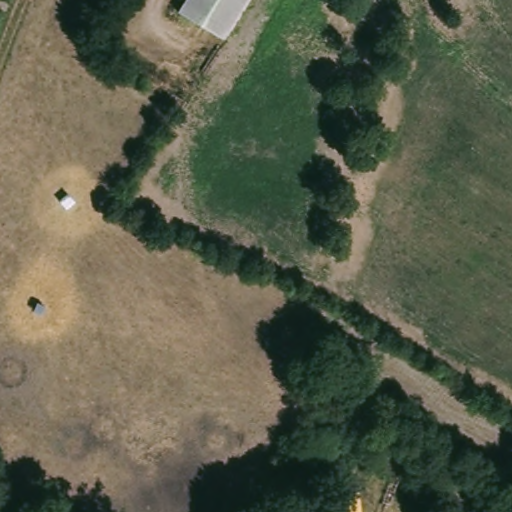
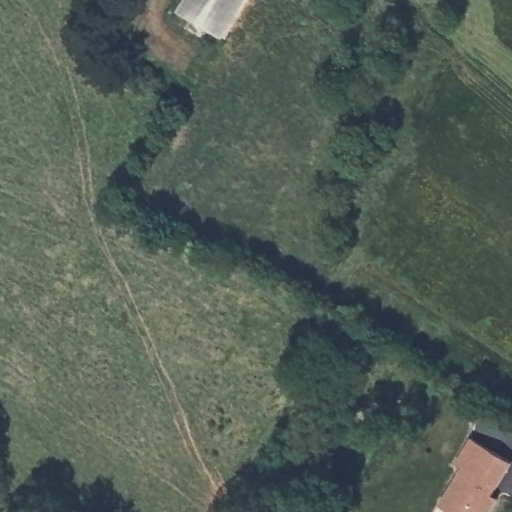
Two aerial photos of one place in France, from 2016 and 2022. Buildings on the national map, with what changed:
unchanged [(219,36),(179,11),(186,0),(241,0),(219,36)]
new [(457,466),(474,439),(512,462),(512,466),(494,496),(501,500),(493,512),(451,512),(441,506),(463,470),(457,466)]

